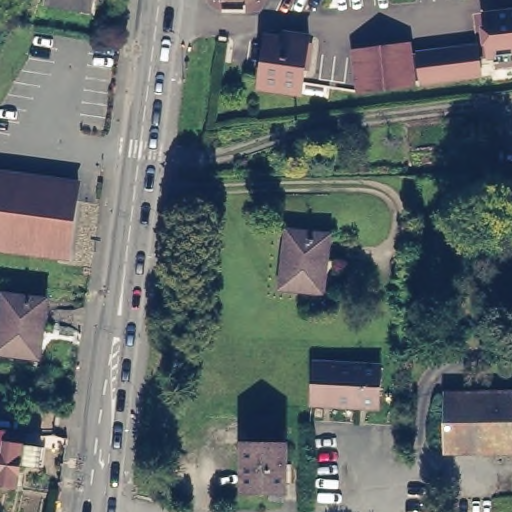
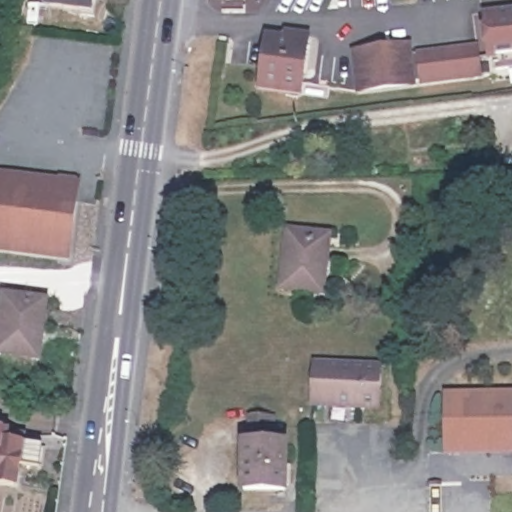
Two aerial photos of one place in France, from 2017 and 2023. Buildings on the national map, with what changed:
unchanged [(85,11),(52,6),(53,0),(94,0),(92,12),(85,11)]
unchanged [(486,15),(512,11),(512,53),(491,55),(486,15)]
unchanged [(264,92),(266,75),(261,75),(268,26),(291,29),(292,24),(311,26),(311,31),(304,80),(299,80),(296,97),(264,92)]
unchanged [(417,84),(363,90),(358,50),(412,44),(417,84)]
unchanged [(477,44),(482,77),(417,84),(414,60),(413,51),(477,44)]
unchanged [(70,262),(0,253),(0,170),(80,180),(70,262)]
unchanged [(333,229),(329,254),(326,254),(321,286),(281,282),(286,247),(291,247),(294,225),(333,229)]
unchanged [(46,323),(43,322),(38,357),(0,351),(0,340),(3,316),(6,316),(11,294),(49,298),(46,323)]
unchanged [(364,400),(314,398),(314,389),(316,356),(365,359),(384,360),(384,387),(382,401),(364,400)]
unchanged [(448,397),(512,396),(512,454),(449,455),(448,397)]
unchanged [(241,490),(242,443),(246,443),(246,413),(273,415),(273,429),(283,429),(283,443),(282,490),(241,490)]
unchanged [(36,455),(17,453),(14,475),(0,473),(0,421),(6,421),(29,425),(28,434),(38,435),(36,455)]

